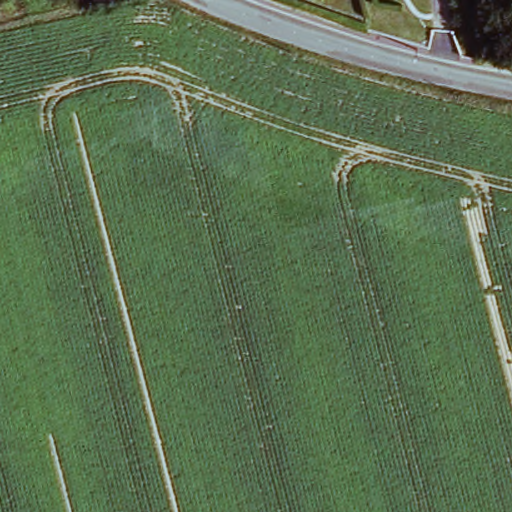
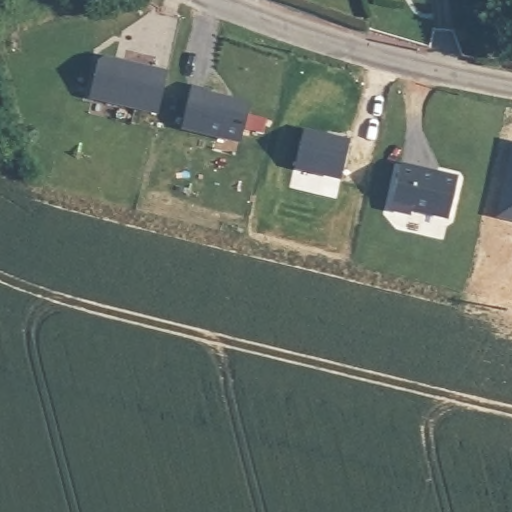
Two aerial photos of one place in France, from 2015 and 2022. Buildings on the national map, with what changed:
new [(98,63),(104,59),(168,74),(158,115),(90,99),(98,63)]
new [(190,87),(207,91),(207,94),(244,103),(248,109),(240,144),(180,129),(190,87)]
new [(400,165),(437,174),(436,175),(457,180),(448,219),(412,211),(410,215),(389,211),(400,165)]

